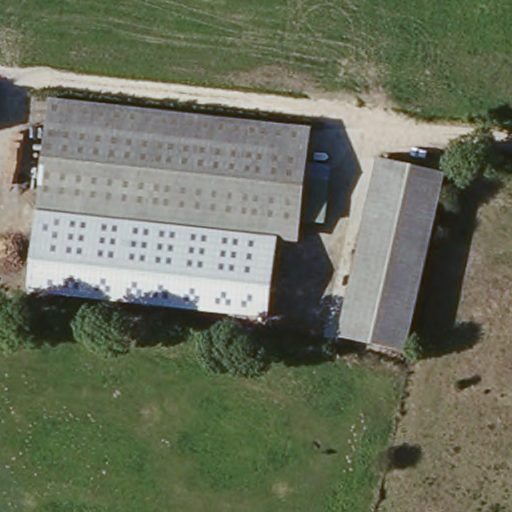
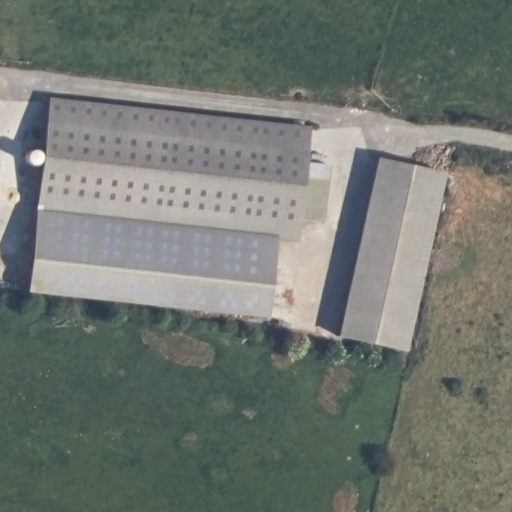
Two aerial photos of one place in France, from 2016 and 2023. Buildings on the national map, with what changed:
unchanged [(310,130),(304,181),(329,184),(324,227),(302,226),(300,246),(36,219),(49,104),(310,130)]
unchanged [(447,176),(408,357),(336,342),(376,163),(447,176)]
unchanged [(278,244),(270,318),(28,293),(36,219),(278,244)]

